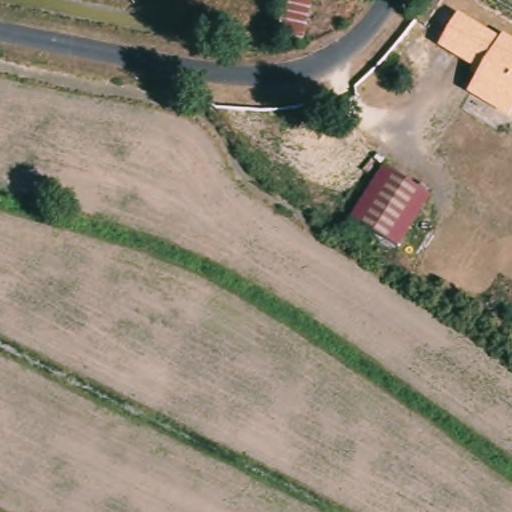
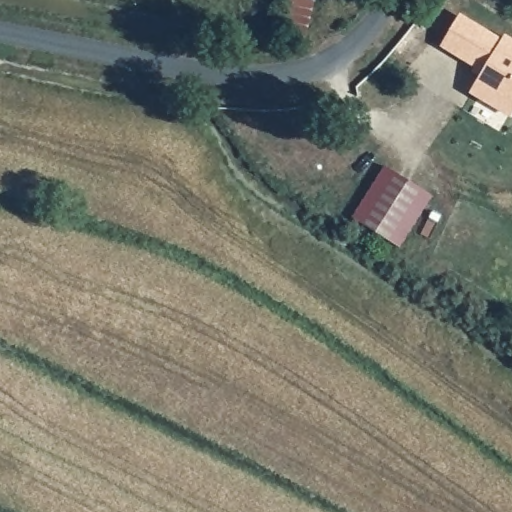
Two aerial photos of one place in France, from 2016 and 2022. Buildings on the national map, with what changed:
unchanged [(304,0),(313,0),(310,42),(281,40),(283,0),(304,0)]
unchanged [(512,40),(512,116),(508,122),(467,96),(479,74),(436,54),(457,13),(505,35),(512,40)]
unchanged [(432,196),(398,248),(350,219),(383,165),(432,196)]

